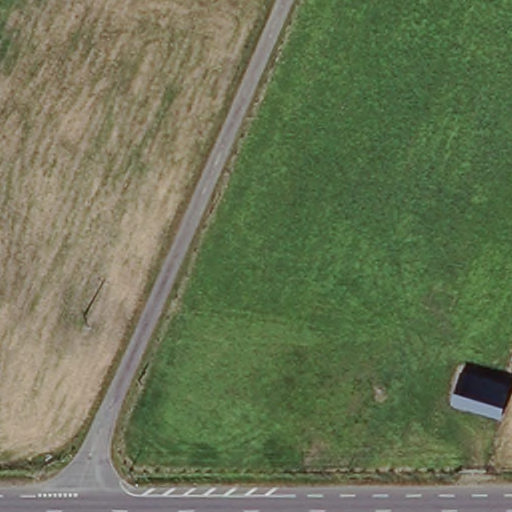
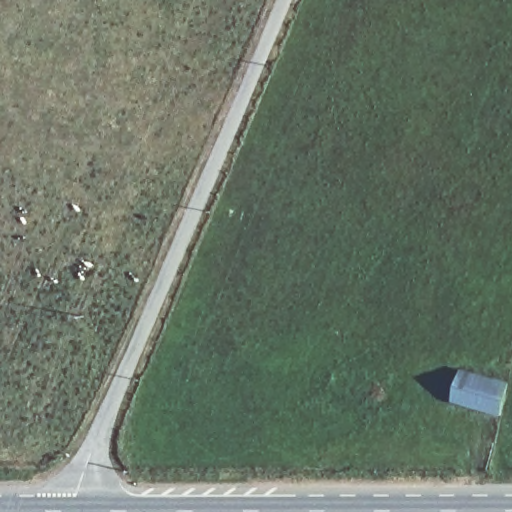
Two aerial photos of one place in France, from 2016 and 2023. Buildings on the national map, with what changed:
unchanged [(506,416),(458,403),(466,372),(511,386),(506,416)]

